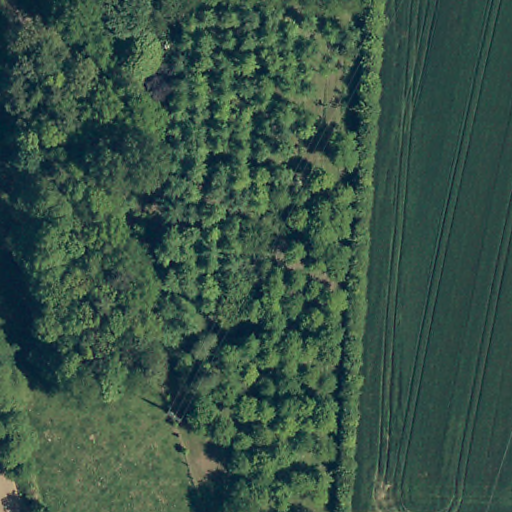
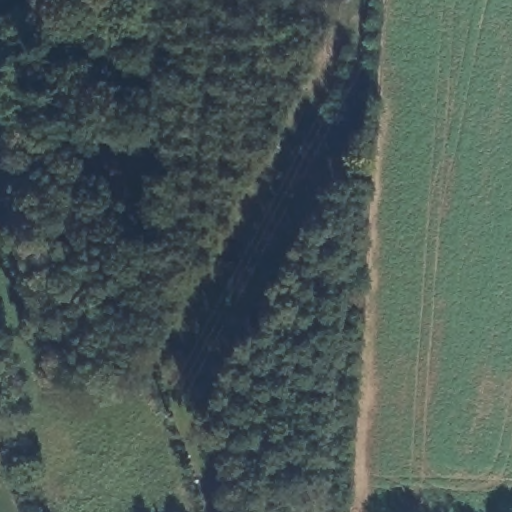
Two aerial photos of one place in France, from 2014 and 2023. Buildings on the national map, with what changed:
unchanged [(24,25),(32,55),(19,57),(9,29),(24,25)]

